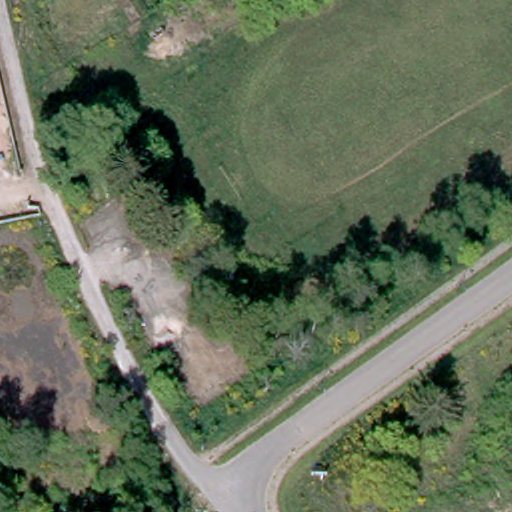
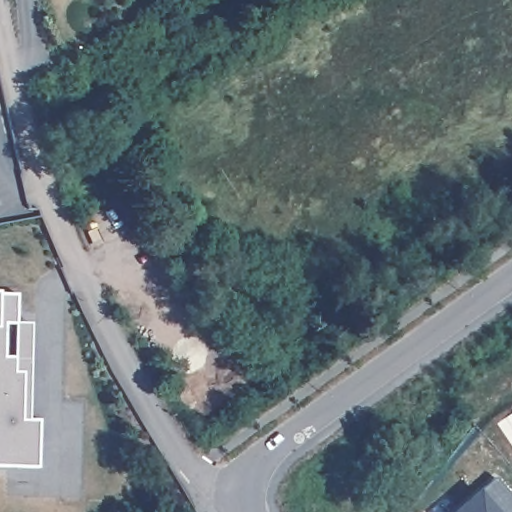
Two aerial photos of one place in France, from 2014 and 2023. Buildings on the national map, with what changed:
new [(15,294),(15,322),(30,322),(29,420),(38,420),(37,466),(0,466),(0,294),(15,294)]
new [(512,498),(512,512),(455,512),(494,477),(512,498)]

